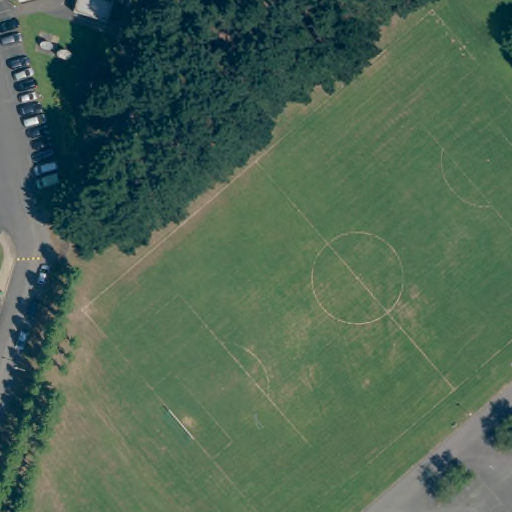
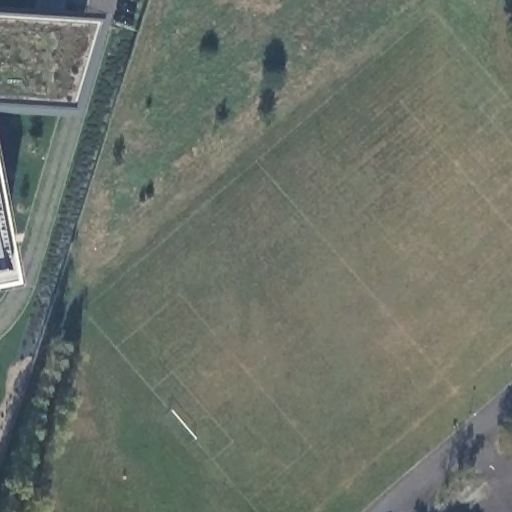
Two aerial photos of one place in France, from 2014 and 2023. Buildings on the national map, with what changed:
new [(64,16),(84,18),(59,119),(0,114),(0,0),(64,0),(64,16)]
demolished [(107,18),(74,7),(76,0),(113,0),(107,18)]

